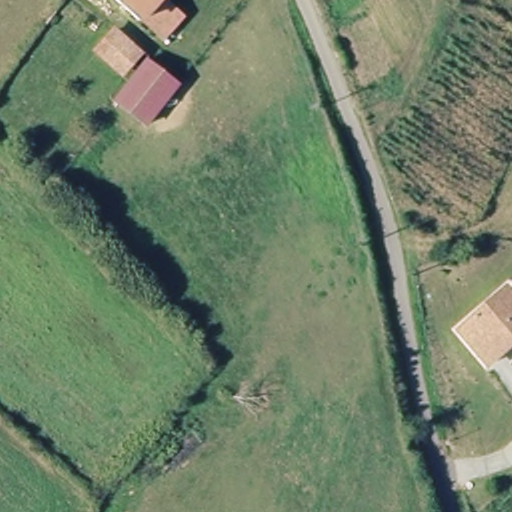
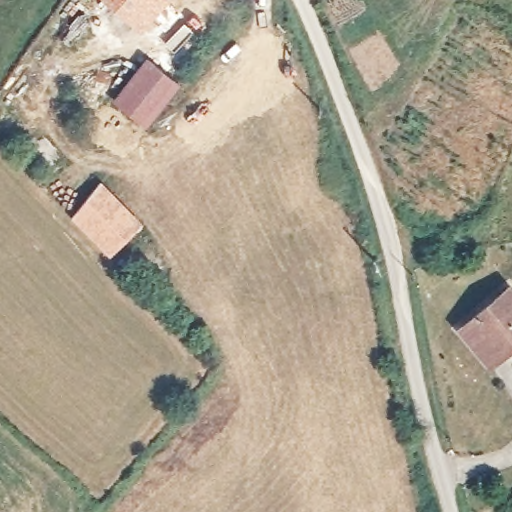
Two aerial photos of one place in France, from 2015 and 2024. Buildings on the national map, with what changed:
unchanged [(141,19),(120,0),(164,0),(180,13),(163,38),(141,19)]
unchanged [(119,75),(94,51),(108,30),(135,55),(119,75)]
unchanged [(174,85),(146,128),(113,104),(143,60),(174,85)]
new [(100,181),(143,224),(109,255),(70,216),(100,181)]
unchanged [(508,292),(512,296),(512,349),(492,368),(462,335),(508,292)]

